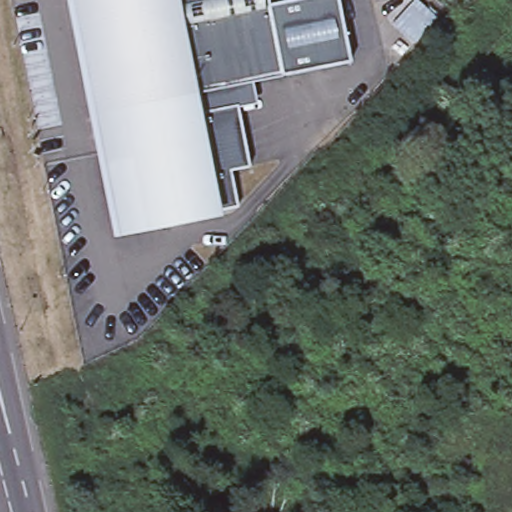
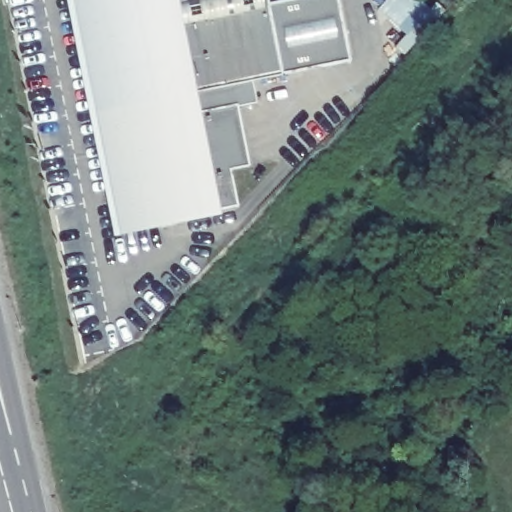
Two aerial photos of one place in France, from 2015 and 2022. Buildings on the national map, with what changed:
unchanged [(282,78),(231,88),(98,115),(75,0),(267,0),(268,6),(282,78)]
unchanged [(337,0),(349,65),(282,78),(268,6),(301,0),(337,0)]
unchanged [(231,88),(248,170),(228,174),(236,210),(121,232),(98,115),(231,88)]

